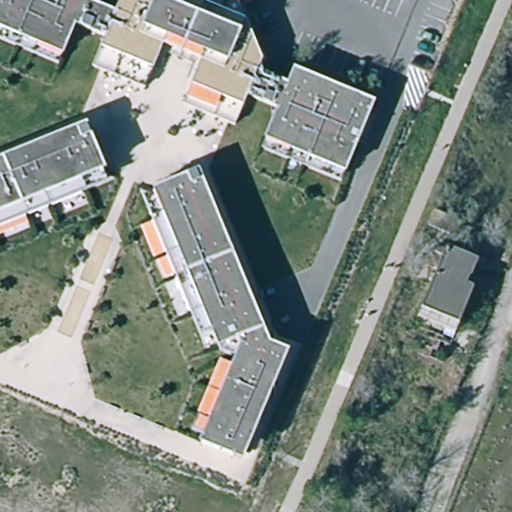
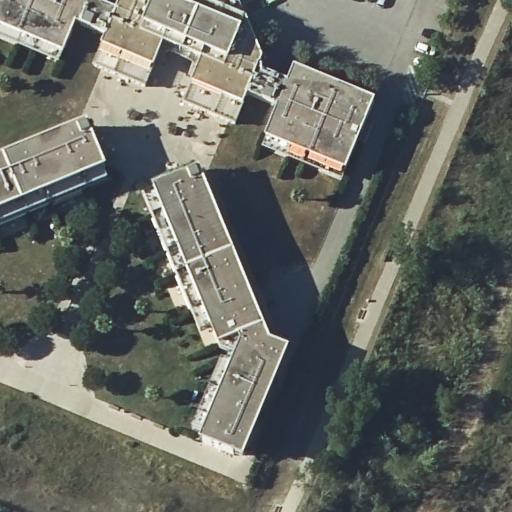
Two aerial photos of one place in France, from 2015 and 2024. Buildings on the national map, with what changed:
unchanged [(115,11),(118,2),(123,0),(246,0),(238,3),(245,20),(263,61),(259,72),(287,83),(293,68),(376,102),(346,173),(342,181),(261,148),(264,138),(276,109),(248,98),(244,107),(235,126),(183,105),(192,84),(201,62),(163,46),(154,68),(145,89),(92,68),(102,47),(106,38),(76,27),(64,55),(59,63),(0,39),(0,0),(87,0),(115,11)]
unchanged [(106,171),(101,173),(105,181),(0,224),(0,159),(87,124),(106,171)]
unchanged [(269,343),(290,350),(244,462),(199,444),(202,436),(192,431),(223,359),(219,350),(212,330),(199,333),(143,195),(152,189),(199,170),(269,343)]
demolished [(439,211),(464,222),(457,237),(431,227),(439,211)]
demolished [(448,247),(483,262),(473,287),(480,290),(463,334),(417,316),(448,247)]

